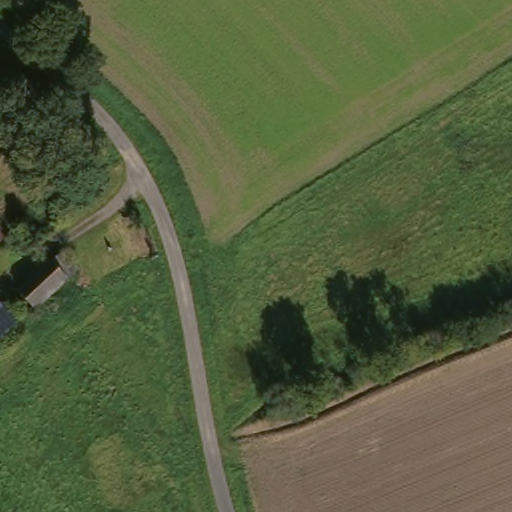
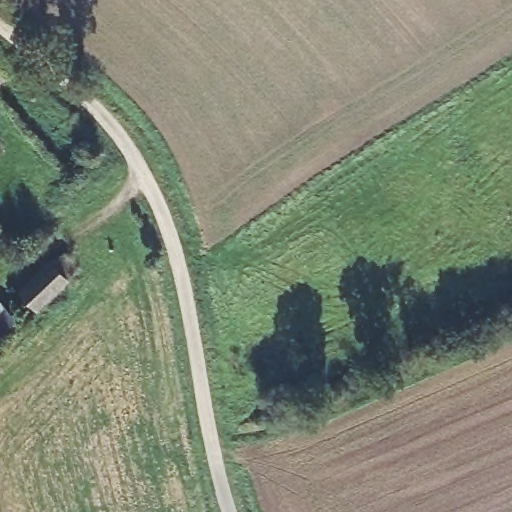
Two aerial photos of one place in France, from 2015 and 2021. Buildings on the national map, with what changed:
unchanged [(0,243),(0,229),(7,237),(0,243)]
unchanged [(17,297),(61,260),(75,277),(31,314),(17,297)]
unchanged [(19,335),(0,350),(0,313),(1,312),(19,335)]

